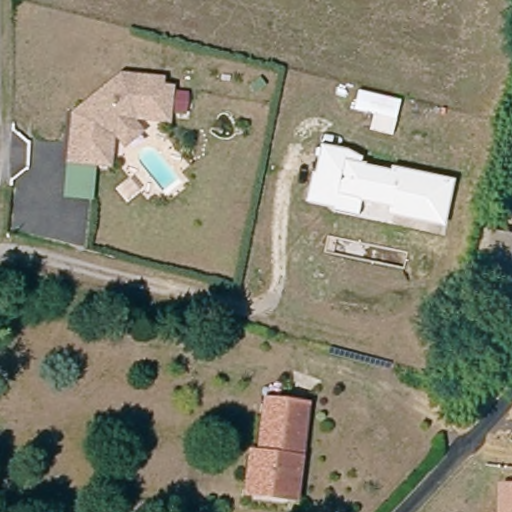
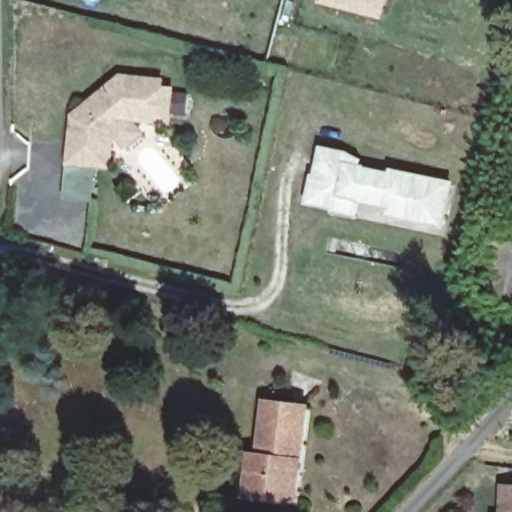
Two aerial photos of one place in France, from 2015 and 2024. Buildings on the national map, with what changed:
new [(318,2),(318,0),(387,0),(382,18),(318,2)]
unchanged [(70,114),(121,72),(165,77),(164,86),(177,86),(173,125),(138,121),(146,132),(124,147),(116,139),(113,169),(98,167),(94,201),(64,197),(70,114)]
unchanged [(311,173),(315,175),(321,144),(348,148),(363,157),(362,163),(367,164),(366,167),(391,172),(392,167),(456,181),(446,227),(388,215),(390,209),(362,204),(359,218),(334,214),(331,209),(305,203),(311,173)]
unchanged [(512,245),(512,307),(472,297),(486,239),(512,245)]
unchanged [(275,500),(239,489),(250,450),(257,452),(273,400),(313,412),(298,463),(286,503),(275,500)]
unchanged [(503,487),(512,488),(512,512),(501,512),(503,487)]

